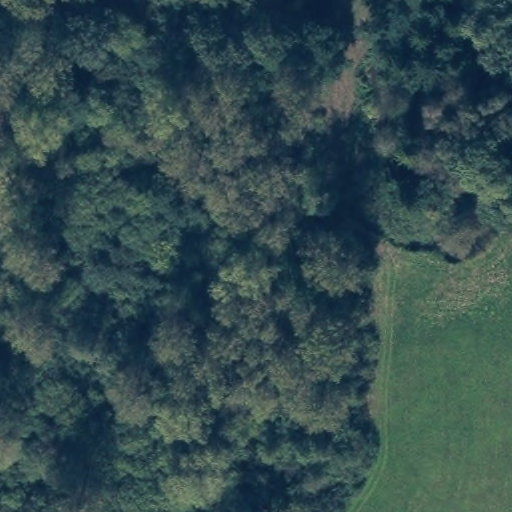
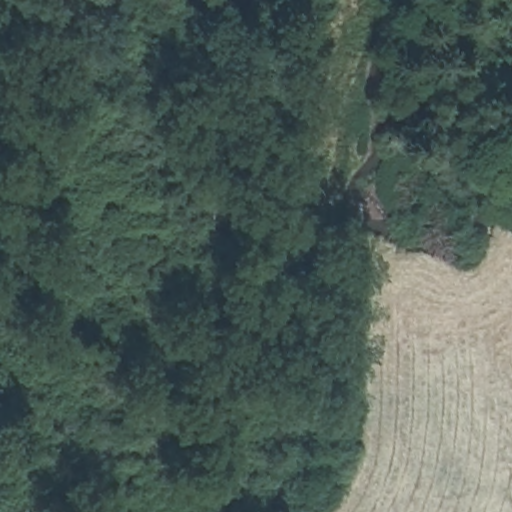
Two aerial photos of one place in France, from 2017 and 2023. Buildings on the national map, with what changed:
[]

